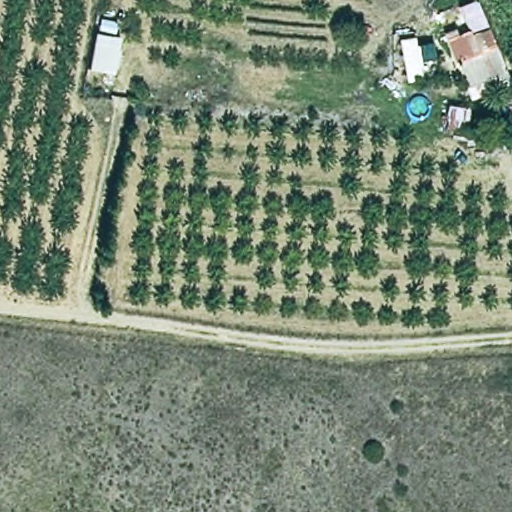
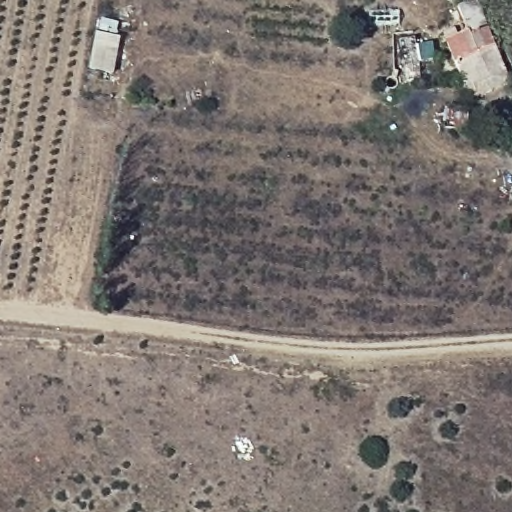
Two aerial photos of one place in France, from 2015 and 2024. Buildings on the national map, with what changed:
unchanged [(466,92),(437,27),(437,0),(466,0),(506,76),(466,92)]

